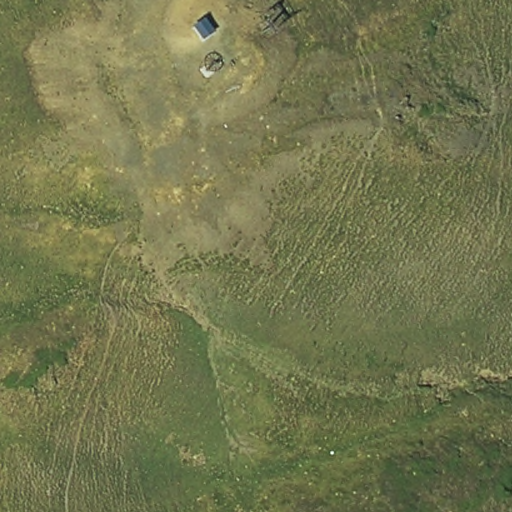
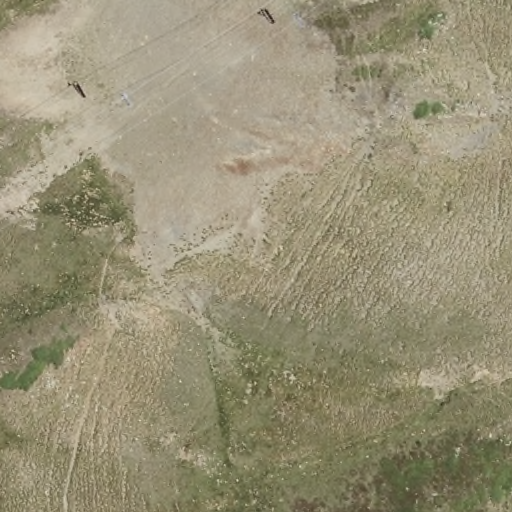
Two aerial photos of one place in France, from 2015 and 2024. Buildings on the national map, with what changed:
unchanged [(190,21),(204,10),(218,29),(202,36),(190,21)]

